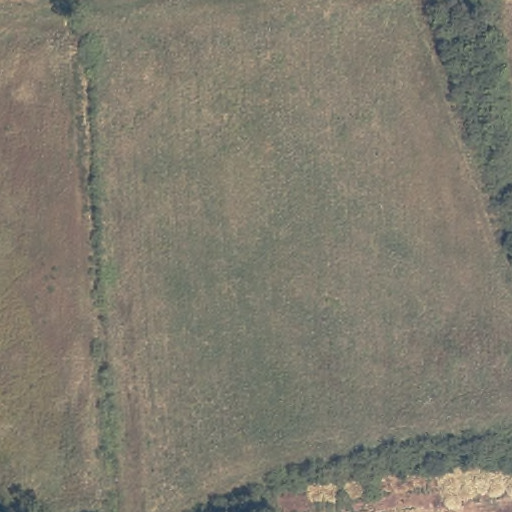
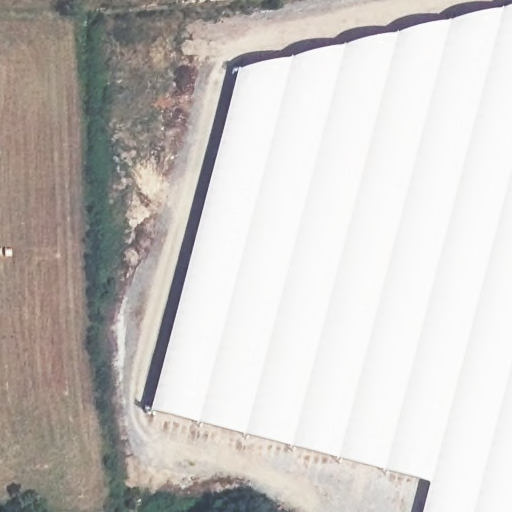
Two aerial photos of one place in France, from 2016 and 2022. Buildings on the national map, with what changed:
new [(153,412),(241,71),(512,7),(512,512),(426,512),(432,486),(153,412)]

